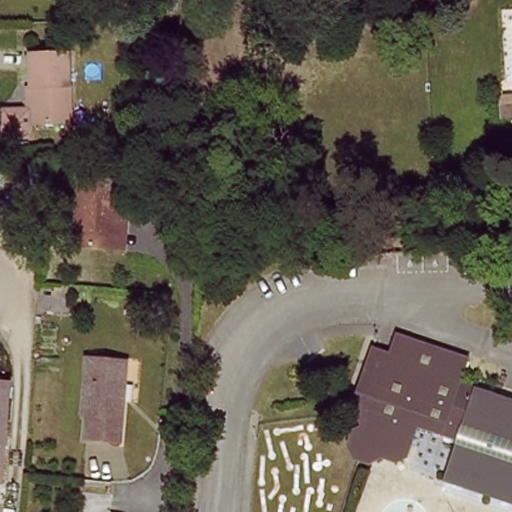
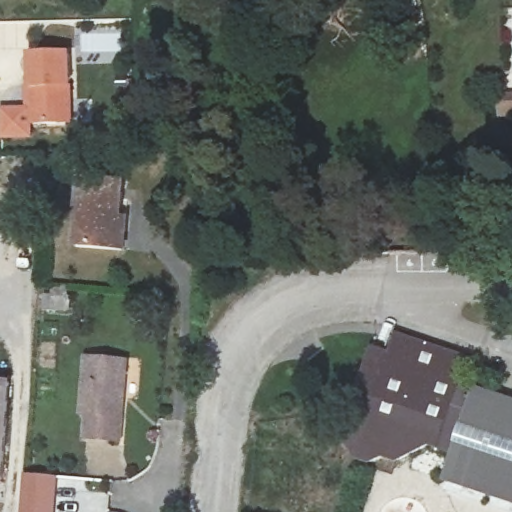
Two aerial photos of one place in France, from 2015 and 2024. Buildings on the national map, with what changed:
unchanged [(68,47),(69,117),(30,117),(30,130),(3,130),(3,103),(31,102),(29,47),(68,47)]
unchanged [(124,254),(113,254),(76,249),(82,179),(125,183),(121,221),(126,221),(124,254)]
unchanged [(433,503),(454,440),(439,434),(430,460),(405,452),(397,477),(386,482),(371,477),(360,483),(347,478),(339,463),(343,453),(355,448),(348,436),(351,428),(346,422),(357,386),(367,389),(370,378),(377,375),(382,377),(389,357),(457,380),(443,422),(459,427),(465,410),(512,426),(512,512),(459,512),(433,503)]
unchanged [(127,362),(119,445),(86,442),(89,418),(82,417),(88,360),(127,362)]
unchanged [(0,382),(13,382),(6,484),(0,484),(0,382)]
new [(58,512),(23,512),(26,477),(60,478),(58,512)]

